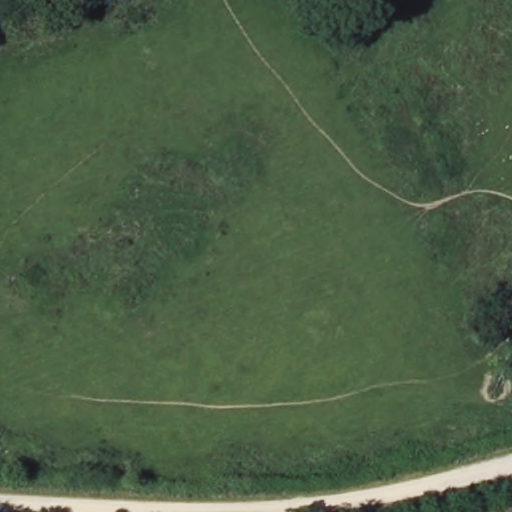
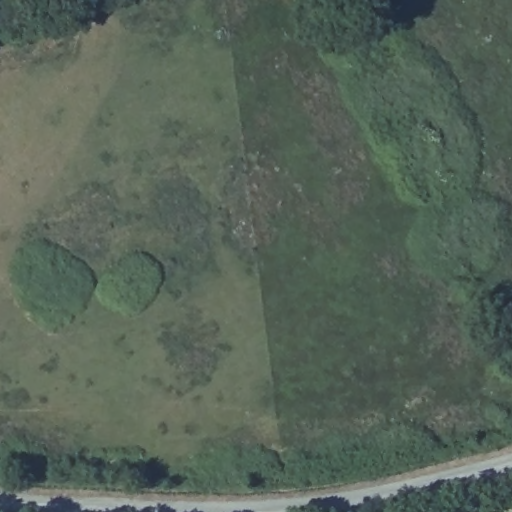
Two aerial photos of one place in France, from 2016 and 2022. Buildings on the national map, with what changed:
[]

